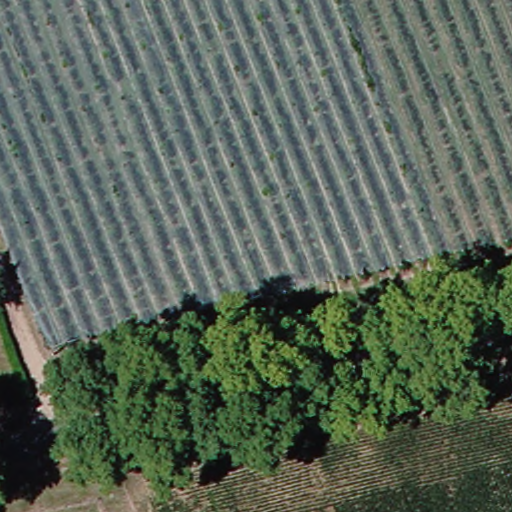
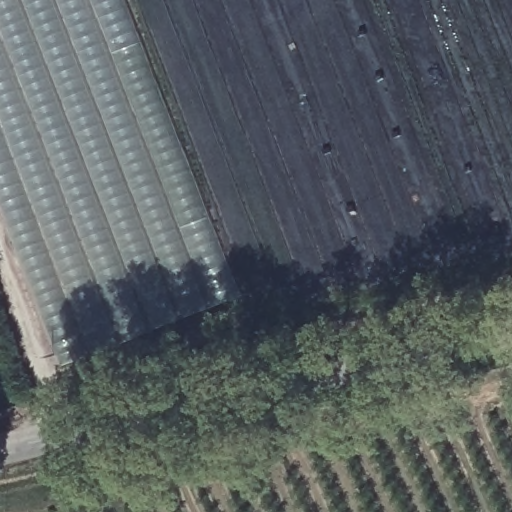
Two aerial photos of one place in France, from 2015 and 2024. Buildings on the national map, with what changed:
new [(0,198),(0,0),(129,0),(244,293),(65,365),(0,198)]

